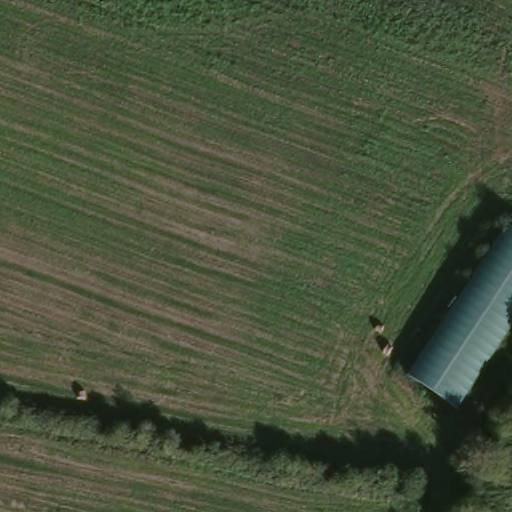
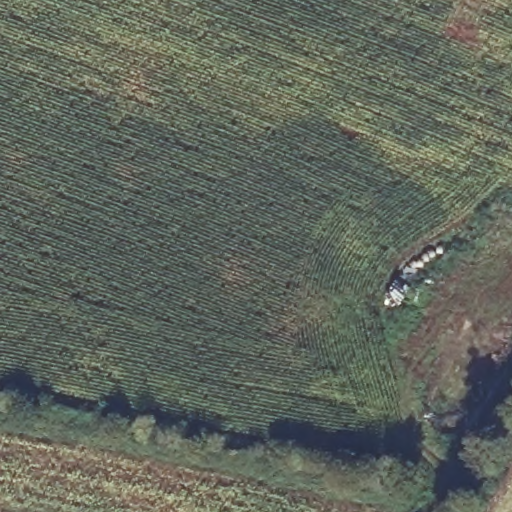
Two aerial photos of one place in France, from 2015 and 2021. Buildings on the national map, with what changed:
demolished [(512,321),(452,409),(406,374),(506,227),(512,230),(512,321)]

